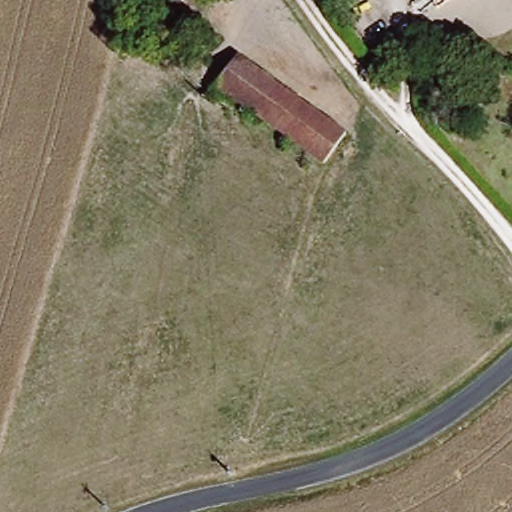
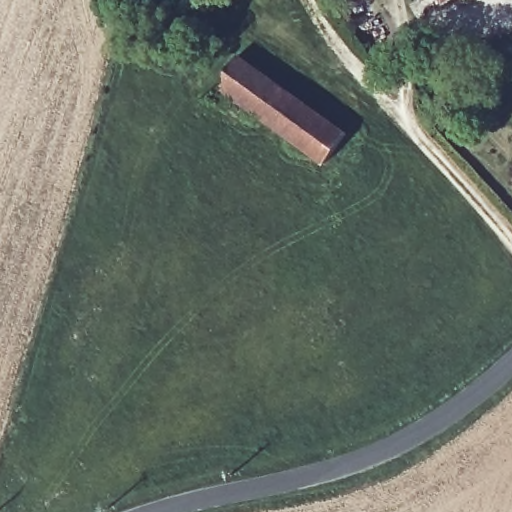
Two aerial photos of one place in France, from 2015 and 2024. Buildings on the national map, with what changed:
unchanged [(314,2),(312,0),(317,0),(314,2)]
unchanged [(347,131),(322,164),(212,84),(236,51),(347,131)]

